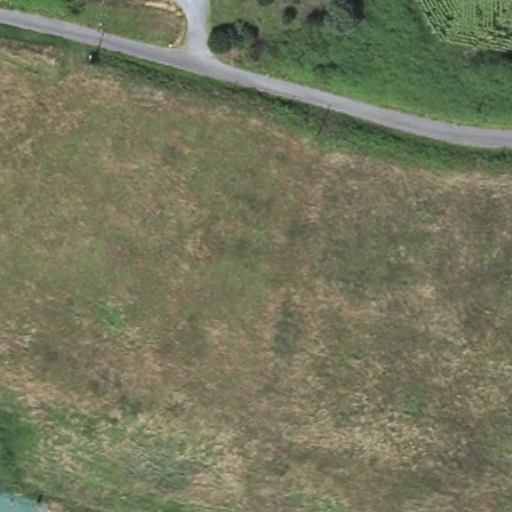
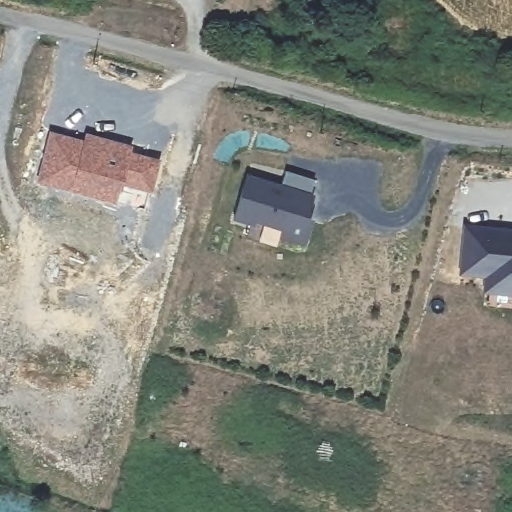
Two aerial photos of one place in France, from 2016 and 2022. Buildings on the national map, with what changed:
new [(144,209),(70,191),(39,181),(51,133),(84,143),(86,134),(130,149),(128,152),(158,161),(144,209)]
new [(282,184),(286,171),(314,179),(310,193),(314,194),(308,218),(312,220),(304,244),(280,238),(282,232),(254,222),(252,226),(234,220),(247,173),(282,184)]
new [(483,278),(460,274),(464,225),(512,230),(512,295),(481,292),(483,278)]

